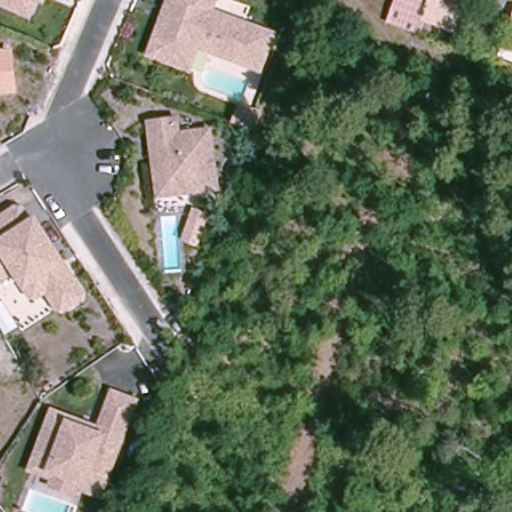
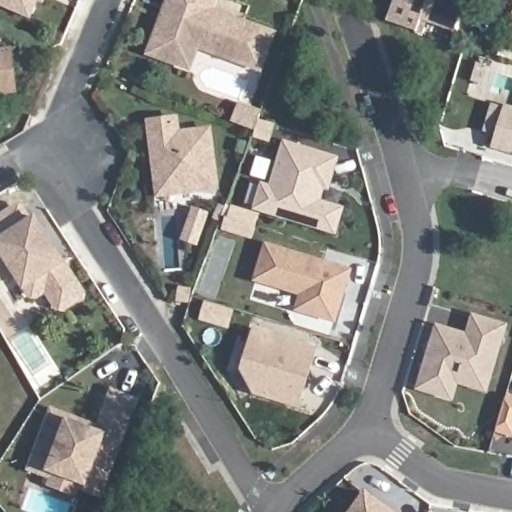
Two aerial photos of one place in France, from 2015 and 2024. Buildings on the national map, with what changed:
unchanged [(33,0),(27,13),(0,1),(0,0),(33,0)]
unchanged [(179,62),(151,51),(164,19),(169,5),(171,0),(217,0),(213,9),(276,32),(262,69),(200,45),(191,67),(179,62)]
demolished [(387,20),(395,0),(429,0),(416,32),(387,20)]
new [(422,17),(416,32),(387,20),(395,0),(465,0),(453,30),(422,17)]
unchanged [(18,92),(0,94),(0,48),(12,46),(18,92)]
unchanged [(240,103),(260,111),(257,120),(254,127),(233,120),(240,103)]
new [(507,110),(512,111),(512,153),(495,148),(507,110)]
unchanged [(152,160),(148,124),(175,120),(177,136),(209,132),(215,190),(195,192),(157,197),(152,160)]
new [(259,210),(266,188),(275,190),(288,146),(339,161),(333,181),(328,180),(321,204),(344,211),(338,234),(259,210)]
unchanged [(14,210),(20,211),(28,224),(32,220),(58,263),(64,273),(76,293),(74,300),(57,310),(51,309),(42,295),(33,300),(26,299),(10,273),(0,280),(0,218),(14,210)]
new [(301,311),(306,295),(259,281),(270,248),(352,273),(337,322),(301,311)]
new [(457,381),(452,398),(420,388),(427,366),(432,364),(434,356),(430,355),(439,328),(469,338),(475,318),(505,327),(490,376),(485,390),(457,381)]
new [(318,351),(301,407),(258,394),(246,371),(258,333),(318,351)]
unchanged [(75,479),(72,486),(49,477),(51,470),(28,461),(34,447),(50,403),(97,421),(111,385),(134,393),(103,474),(98,488),(75,479)]
new [(505,400),(512,402),(512,435),(510,442),(494,437),(505,400)]
new [(367,495),(383,507),(380,510),(383,512),(355,512),(367,495)]

